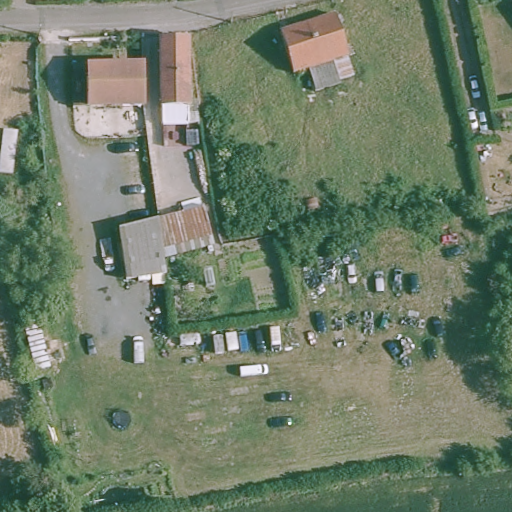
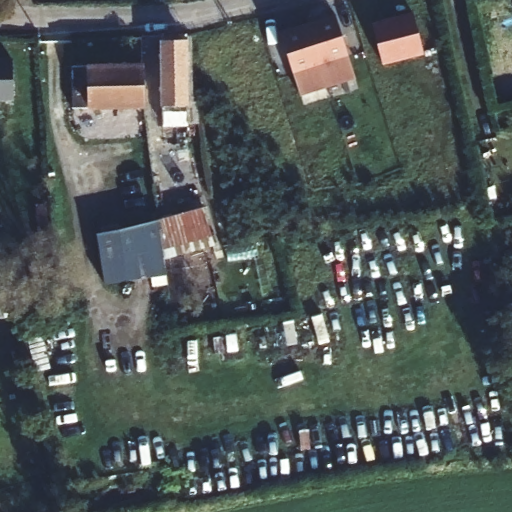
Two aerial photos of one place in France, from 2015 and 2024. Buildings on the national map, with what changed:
new [(423,54),(383,64),(370,23),(411,13),(423,54)]
unchanged [(312,91),(308,78),(305,69),(290,73),(278,34),(331,18),(343,58),(330,61),(332,70),(337,86),(312,91)]
unchanged [(183,103),(160,102),(161,40),(182,40),(183,103)]
unchanged [(148,107),(77,108),(77,64),(147,63),(148,107)]
unchanged [(0,217),(0,196),(2,195),(3,217),(0,217)]
unchanged [(212,216),(217,247),(167,253),(163,225),(212,216)]
unchanged [(167,253),(167,257),(170,280),(130,284),(124,232),(163,225),(167,253)]

